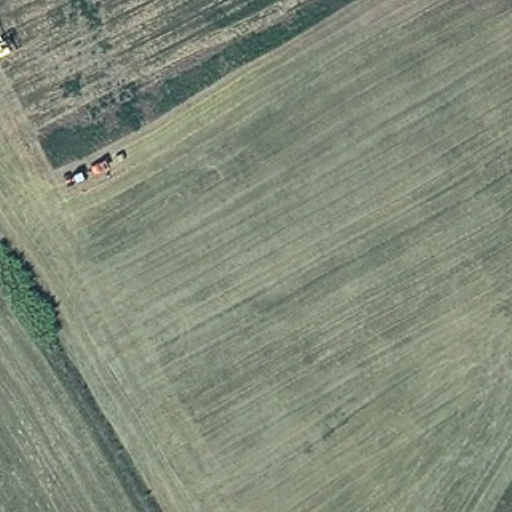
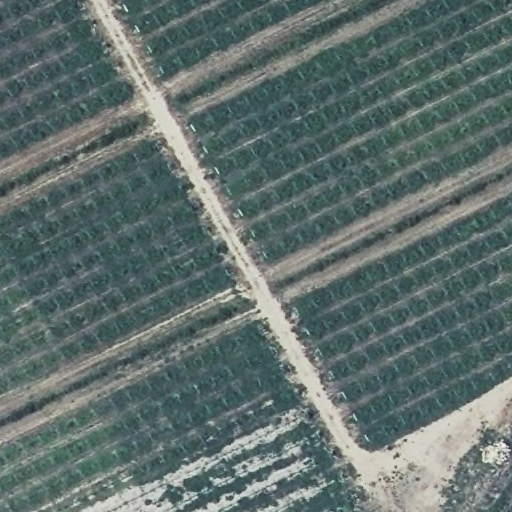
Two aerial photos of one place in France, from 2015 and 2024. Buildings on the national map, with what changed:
[]

